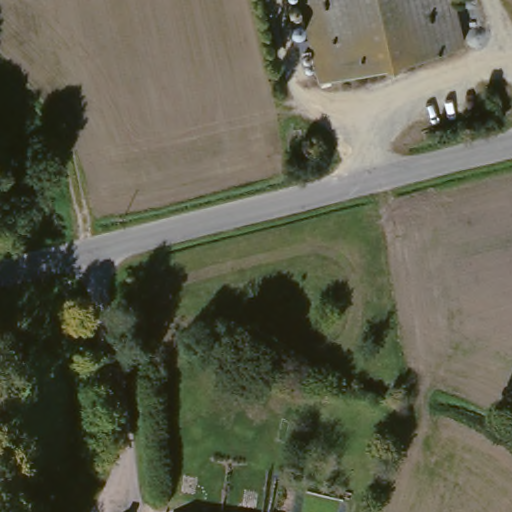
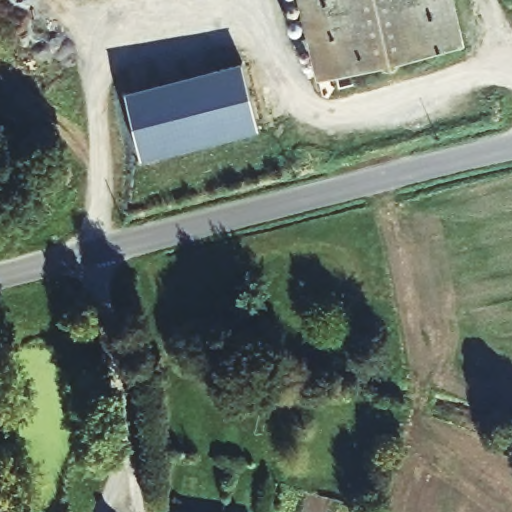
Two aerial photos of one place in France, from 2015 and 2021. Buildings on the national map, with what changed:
unchanged [(297,0),(454,0),(465,46),(316,82),(297,0)]
new [(242,61),(261,130),(141,159),(126,91),(242,61)]

